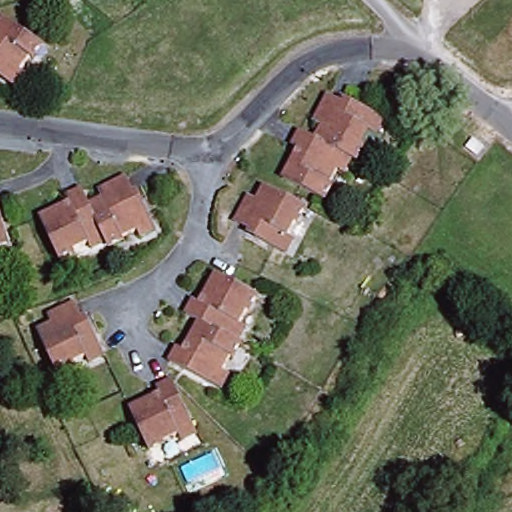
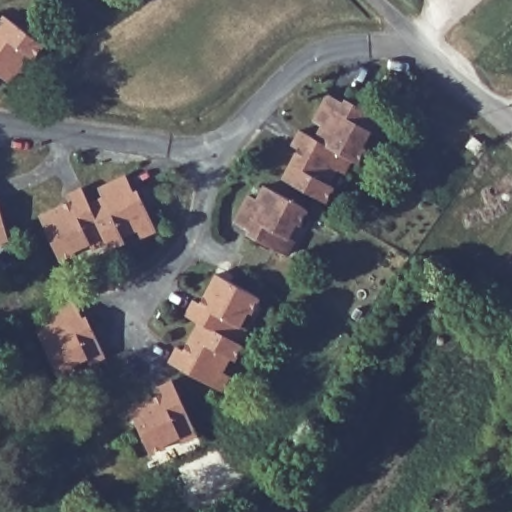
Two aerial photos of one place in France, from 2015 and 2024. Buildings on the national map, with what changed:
unchanged [(22,84),(13,79),(0,72),(0,17),(4,10),(41,33),(22,64),(31,69),(22,84)]
unchanged [(341,166),(325,194),(284,170),(296,149),(301,151),(305,144),(296,138),(304,126),(320,134),(326,123),(316,115),(330,91),(346,99),(346,105),(351,108),(357,99),(382,112),(390,117),(381,133),(373,129),(359,155),(350,172),(341,166)]
unchanged [(86,240),(57,253),(39,212),(62,200),(66,206),(72,203),(66,189),(80,182),(87,197),(107,190),(103,180),(125,169),(133,184),(128,187),(132,193),(139,191),(153,218),(158,229),(142,237),(136,227),(110,240),(90,248),(86,240)]
unchanged [(281,249),(261,236),(267,225),(257,219),(253,224),(236,214),(253,187),(264,192),(272,179),(310,200),(292,231),(300,236),(290,254),(281,249)]
unchanged [(2,225),(5,234),(0,236),(0,217),(2,225)]
unchanged [(218,383),(172,360),(182,342),(191,347),(197,346),(198,339),(195,335),(202,320),(192,314),(200,298),(211,303),(214,297),(209,294),(223,273),(260,291),(244,321),(252,324),(243,340),(241,339),(226,367),(235,371),(227,387),(218,383)]
unchanged [(93,361),(90,352),(56,366),(40,326),(56,319),(52,308),(78,297),(84,310),(78,313),(82,322),(93,316),(106,345),(110,354),(93,361)]
unchanged [(179,432),(152,445),(133,404),(155,394),(158,401),(165,398),(160,384),(176,376),(196,425),(200,434),(183,441),(179,432)]

